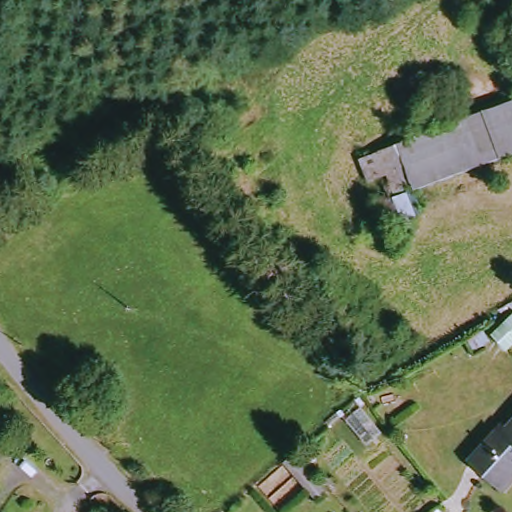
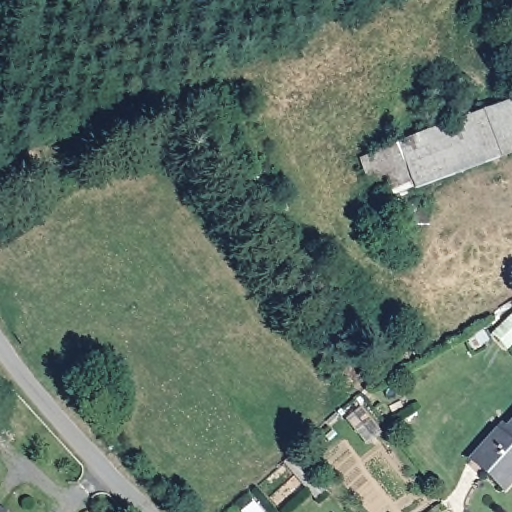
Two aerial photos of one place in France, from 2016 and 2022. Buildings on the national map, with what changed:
unchanged [(401,197),(384,153),(512,108),(512,157),(401,197)]
unchanged [(89,407),(73,388),(88,376),(103,395),(89,407)]
unchanged [(503,435),(506,438),(512,432),(512,478),(504,487),(477,457),(503,435)]
unchanged [(0,512),(0,510),(3,512),(0,512)]

